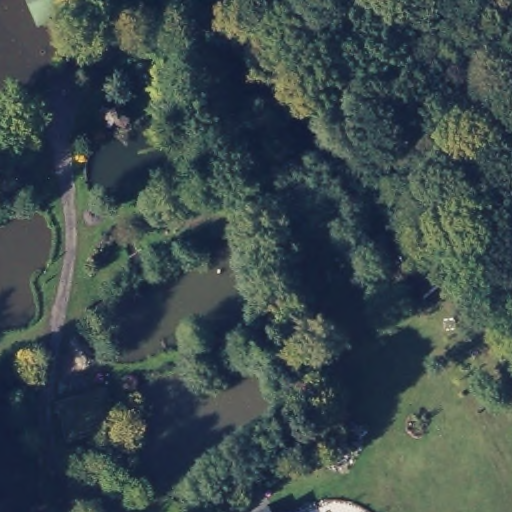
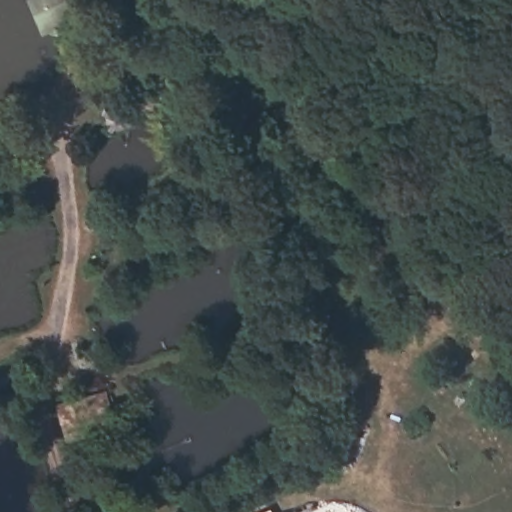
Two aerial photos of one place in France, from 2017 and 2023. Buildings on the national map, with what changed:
unchanged [(57,5),(65,24),(43,33),(28,0),(63,0),(64,2),(57,5)]
unchanged [(445,279),(418,307),(397,282),(429,254),(445,279)]

